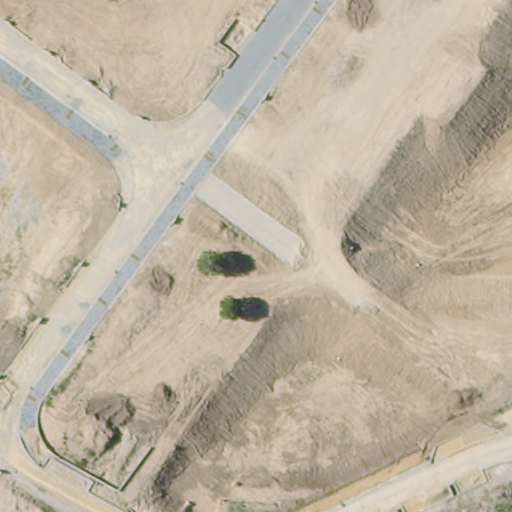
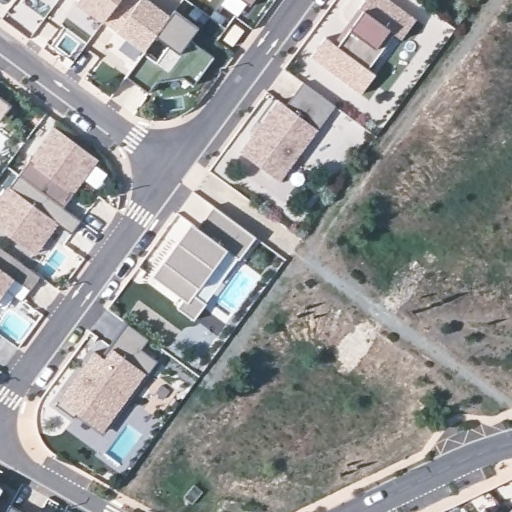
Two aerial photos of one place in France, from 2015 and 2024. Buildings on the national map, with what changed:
new [(103,23),(77,4),(80,0),(121,0),(105,21),(103,23)]
new [(125,0),(135,7),(140,0),(145,0),(169,18),(156,36),(145,51),(105,21),(121,0),(125,0)]
unchanged [(242,0),(255,0),(251,6),(242,0)]
new [(326,38),(336,45),(367,0),(388,0),(416,19),(361,95),(311,58),(326,38)]
new [(126,77),(144,53),(156,62),(168,46),(156,36),(169,18),(175,10),(198,27),(188,39),(214,58),(193,85),(150,95),(126,77)]
new [(280,102),(287,107),(305,84),(337,108),(283,182),(243,152),(280,102)]
new [(0,120),(0,97),(11,105),(0,120)]
new [(53,130),(110,171),(92,194),(80,186),(63,208),(20,175),(53,130)]
new [(0,231),(0,200),(18,175),(20,175),(63,208),(81,221),(72,235),(57,224),(43,242),(33,255),(20,245),(0,231)]
new [(185,238),(189,240),(213,207),(255,237),(239,260),(226,251),(194,295),(206,304),(194,320),(177,308),(183,300),(155,279),(180,244),(185,238)]
unchanged [(30,291),(15,279),(0,299),(0,248),(40,278),(30,291)]
new [(77,413),(73,418),(55,405),(95,351),(101,342),(110,350),(131,365),(109,348),(128,323),(150,339),(142,349),(158,362),(148,376),(145,374),(121,407),(103,432),(95,426),(77,413)]
new [(0,494),(0,487),(3,488),(0,494)]
new [(10,506),(20,512),(7,512),(10,506)]
new [(485,509),(487,512),(482,512),(485,509)]

